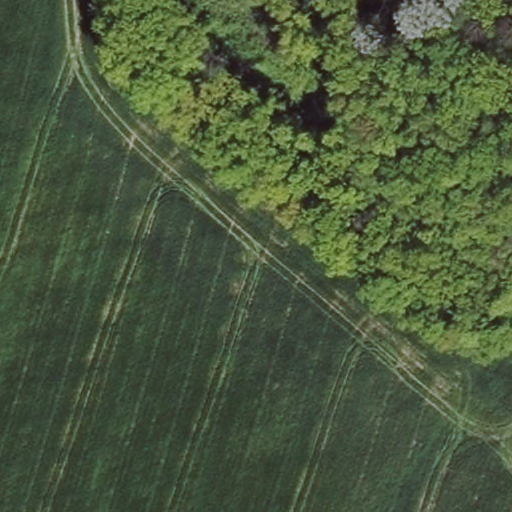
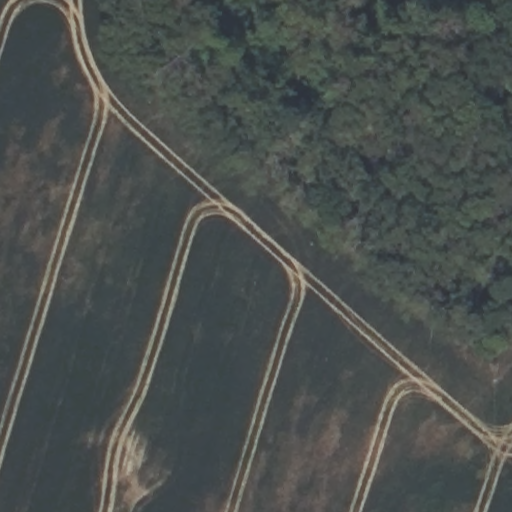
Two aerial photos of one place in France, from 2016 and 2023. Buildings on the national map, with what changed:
[]

